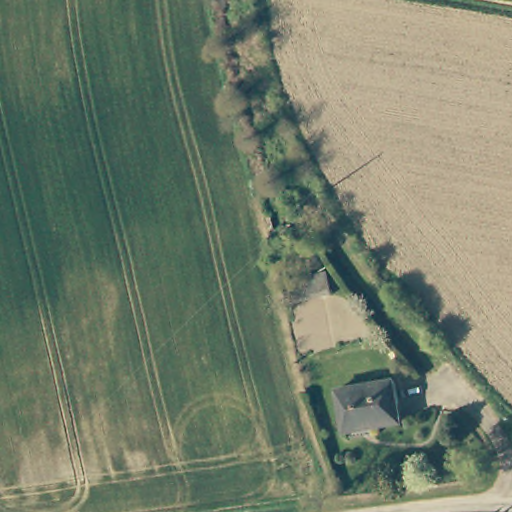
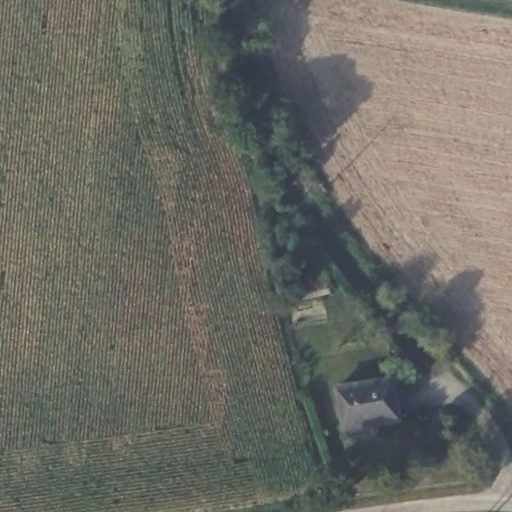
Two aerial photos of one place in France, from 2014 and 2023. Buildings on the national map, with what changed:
unchanged [(330,287),(289,296),(285,279),(325,269),(330,287)]
unchanged [(346,428),(340,387),(397,379),(403,420),(346,428)]

